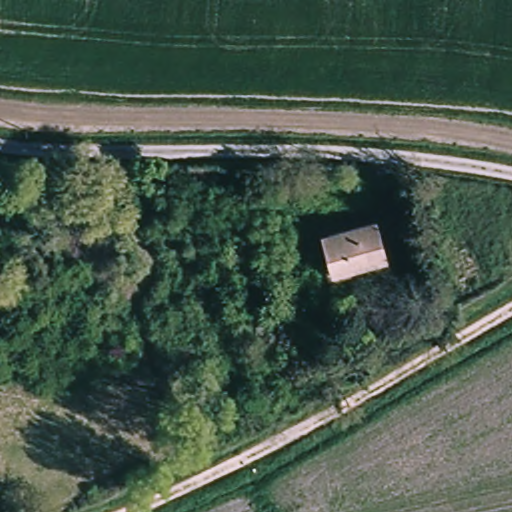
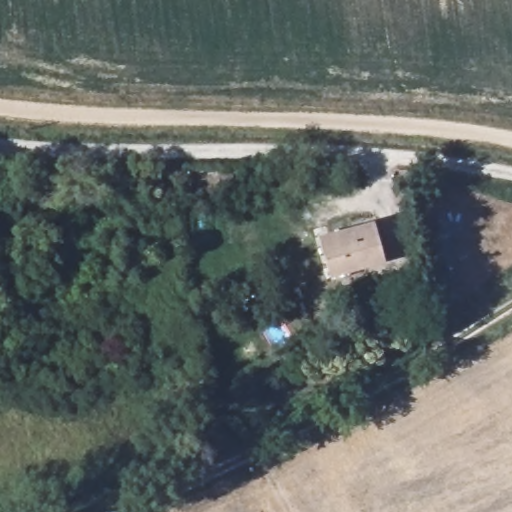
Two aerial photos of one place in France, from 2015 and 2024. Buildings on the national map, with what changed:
unchanged [(326,271),(320,239),(366,229),(375,271),(342,277),(328,280),(326,271)]

